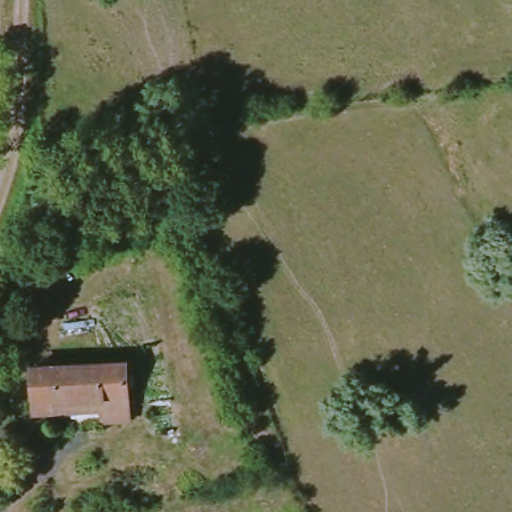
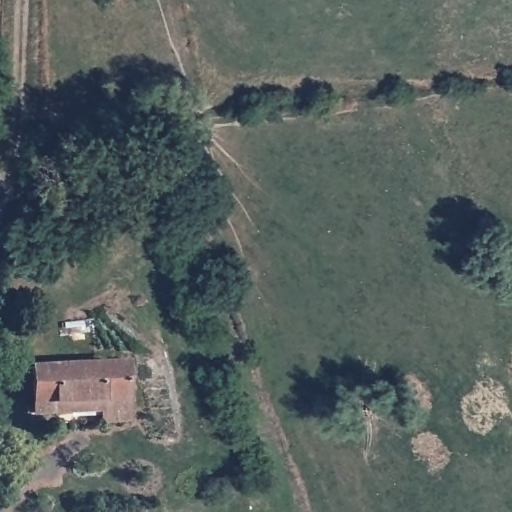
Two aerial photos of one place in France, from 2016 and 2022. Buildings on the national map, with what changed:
unchanged [(26,365),(122,358),(128,415),(100,418),(98,402),(28,409),(26,365)]

